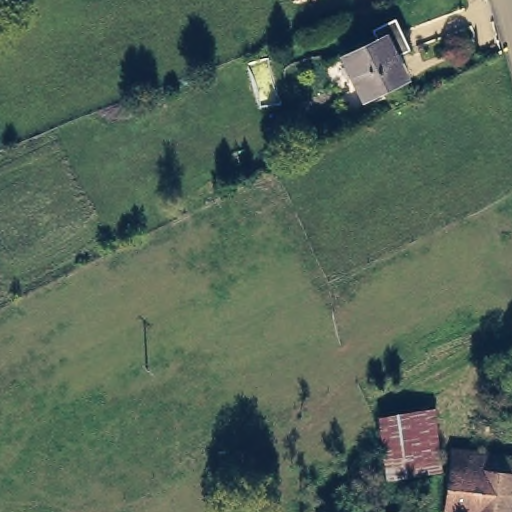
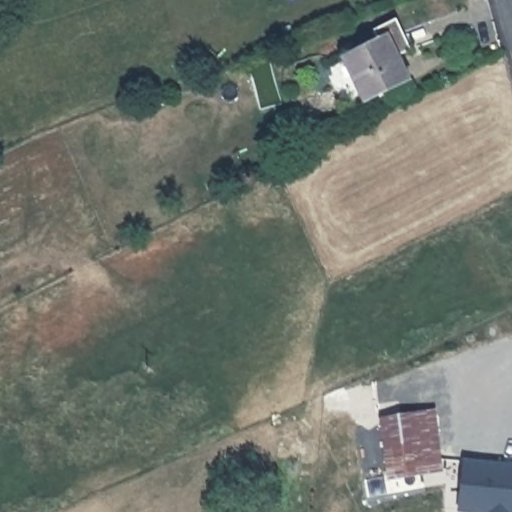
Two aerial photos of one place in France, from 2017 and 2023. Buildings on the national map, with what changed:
unchanged [(382,32),(378,18),(400,10),(417,42),(405,46),(402,40),(393,43),(405,73),(380,84),(384,91),(357,102),(349,101),(330,53),(382,32)]
unchanged [(377,412),(430,402),(437,471),(385,480),(377,412)]
unchanged [(455,469),(457,451),(475,453),(512,459),(512,505),(470,499),(473,471),(455,469)]
unchanged [(511,512),(463,512),(465,499),(470,499),(512,505),(511,512)]

